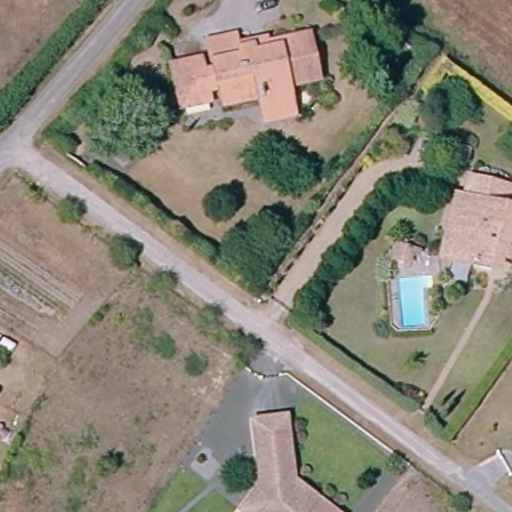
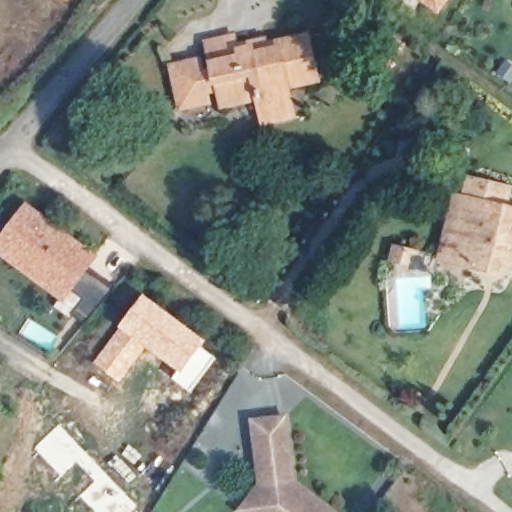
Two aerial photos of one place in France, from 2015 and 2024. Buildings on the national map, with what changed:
new [(440,15),(417,0),(451,0),(440,15)]
unchanged [(219,110),(216,96),(201,98),(203,109),(172,114),(170,103),(165,71),(195,66),(197,79),(214,76),(212,65),(207,40),(237,35),(238,40),(264,35),(265,42),(301,37),(310,35),(313,51),(316,68),(319,85),(309,86),(286,90),(290,119),(258,124),(255,104),(219,110)]
unchanged [(455,162),(455,169),(435,166),(438,140),(467,144),(466,160),(455,162)]
unchanged [(458,198),(470,201),(475,180),(511,188),(506,209),(512,211),(512,259),(504,257),(505,250),(493,248),(490,267),(455,259),(445,257),(453,220),(458,198)]
new [(100,255),(91,267),(116,285),(88,324),(74,315),(84,301),(72,293),(65,301),(0,258),(0,238),(26,201),(100,255)]
unchanged [(382,259),(385,240),(414,245),(410,264),(382,259)]
demolished [(157,327),(121,301),(140,280),(173,305),(157,327)]
new [(146,348),(118,327),(143,293),(206,340),(202,347),(215,356),(190,391),(173,379),(178,373),(146,348)]
new [(118,327),(146,348),(120,384),(92,363),(118,327)]
unchanged [(240,502),(259,480),(250,421),(287,416),(295,482),(333,512),(236,512),(234,510),(240,502)]

